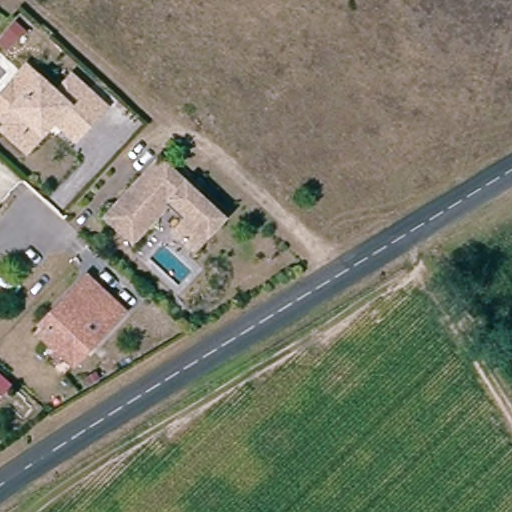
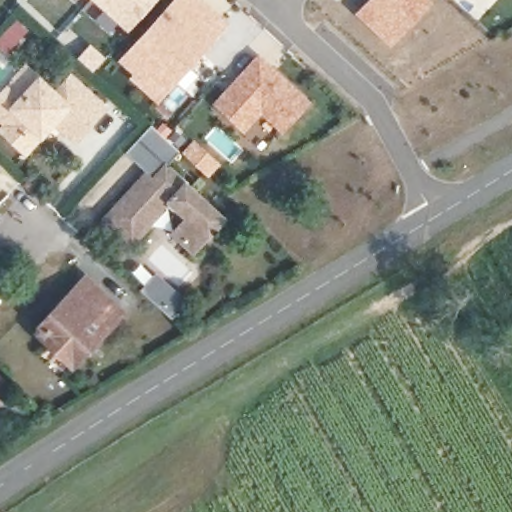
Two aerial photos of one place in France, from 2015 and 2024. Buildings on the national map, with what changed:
new [(92,0),(157,0),(128,33),(92,0)]
new [(158,104),(129,78),(134,73),(118,60),(173,0),(203,0),(229,23),(158,104)]
new [(433,0),(390,46),(354,13),(366,0),(433,0)]
new [(311,101),(284,134),(261,115),(246,132),(212,104),(259,54),(311,101)]
unchanged [(9,114),(0,105),(0,88),(28,59),(57,86),(72,70),(105,101),(75,131),(54,111),(41,125),(25,141),(3,120),(9,114)]
new [(166,166),(161,163),(154,156),(144,168),(126,153),(151,125),(180,151),(166,166)]
unchanged [(190,248),(170,230),(180,218),(162,202),(129,240),(102,216),(137,177),(154,156),(161,163),(219,215),(190,248)]
unchanged [(117,307),(69,360),(47,340),(36,330),(41,324),(37,320),(56,299),(80,273),(117,307)]
new [(188,301),(173,318),(140,290),(156,273),(188,301)]

